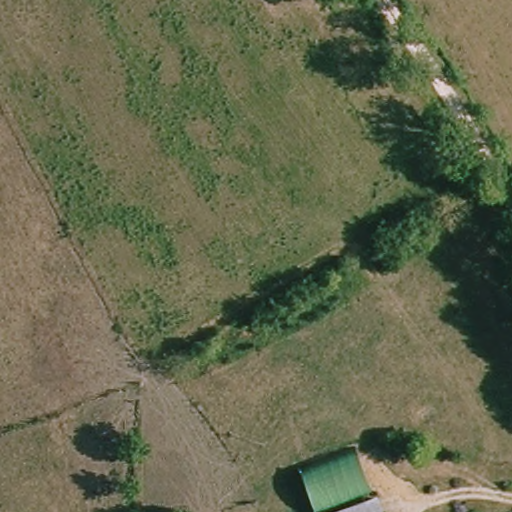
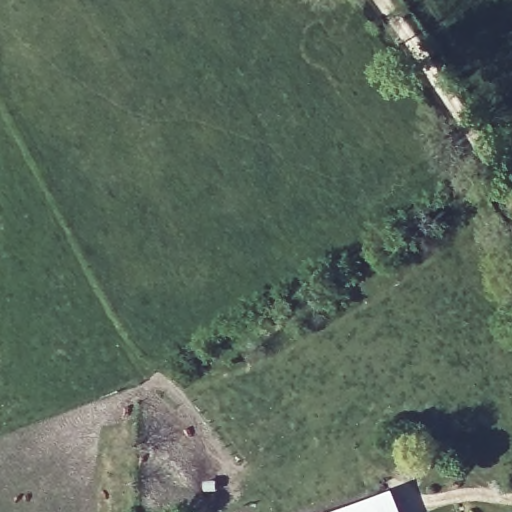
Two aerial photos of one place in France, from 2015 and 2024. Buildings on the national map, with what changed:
demolished [(313,510),(300,468),(358,450),(370,492),(313,510)]
unchanged [(385,512),(329,512),(378,496),(385,512)]

